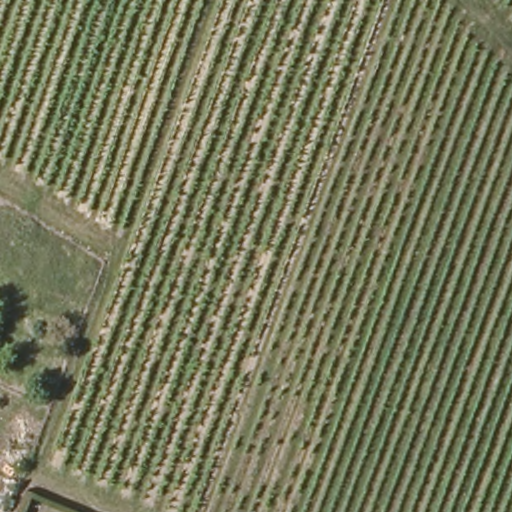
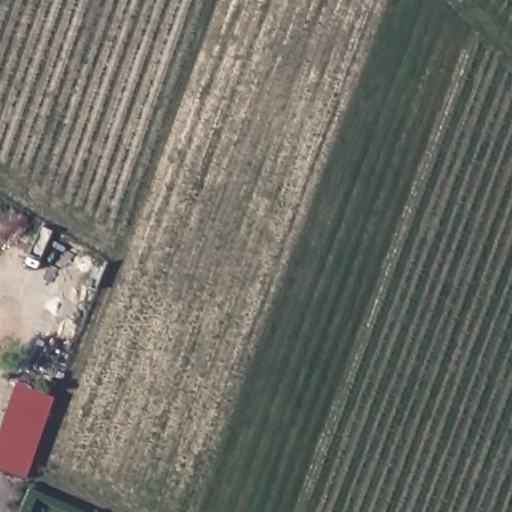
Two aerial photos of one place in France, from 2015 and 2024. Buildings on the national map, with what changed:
new [(50,395),(26,478),(0,470),(0,415),(9,383),(50,395)]

